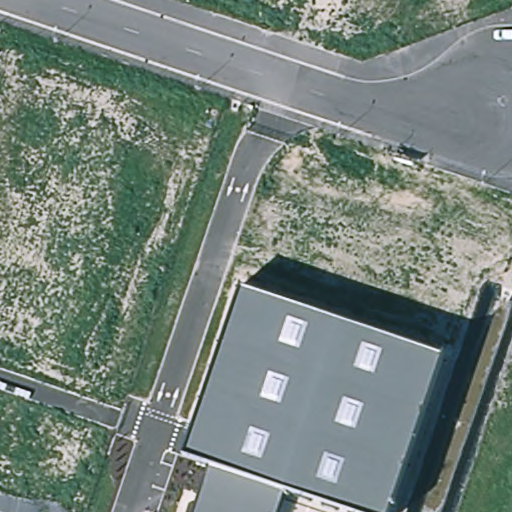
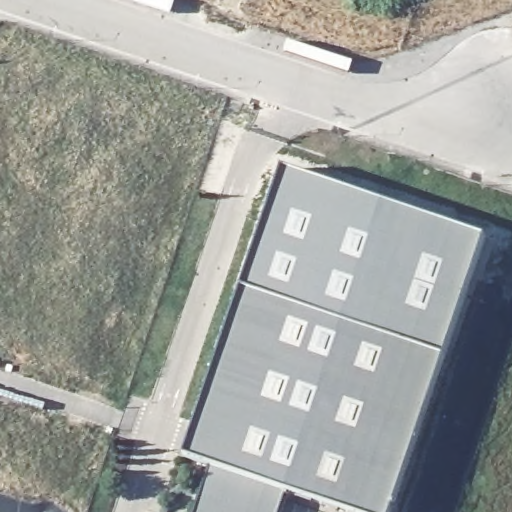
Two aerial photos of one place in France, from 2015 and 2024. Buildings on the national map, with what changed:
new [(444,356),(242,288),(284,171),(484,238),(444,356)]
unchanged [(277,512),(195,512),(208,463),(187,456),(242,288),(444,356),(392,512),(354,512),(284,490),(277,512)]

